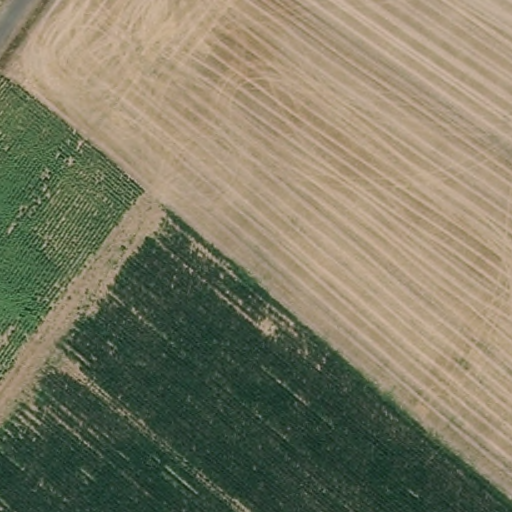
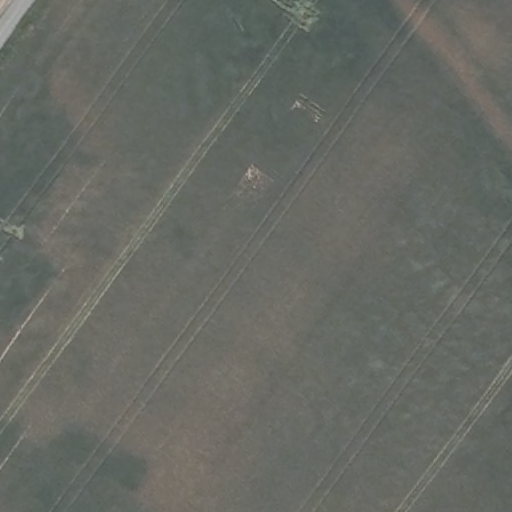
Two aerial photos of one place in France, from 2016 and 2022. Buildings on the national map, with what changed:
[]

